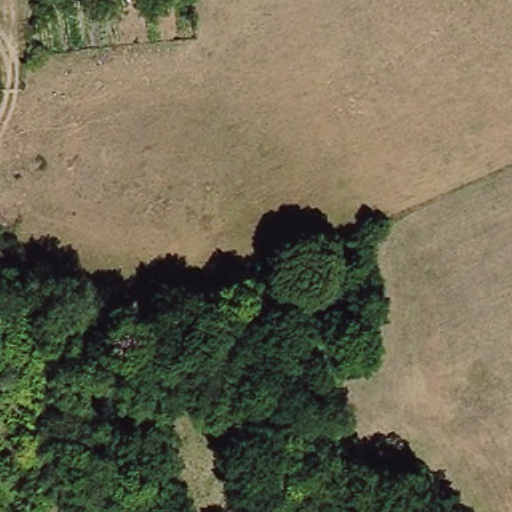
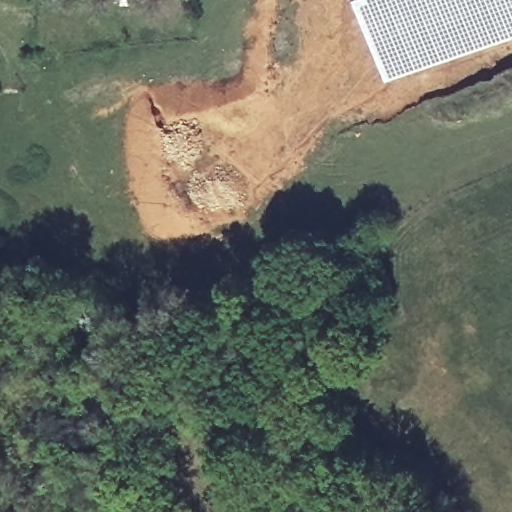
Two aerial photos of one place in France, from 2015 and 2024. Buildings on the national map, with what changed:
new [(388,78),(363,0),(512,0),(512,40),(388,78)]

